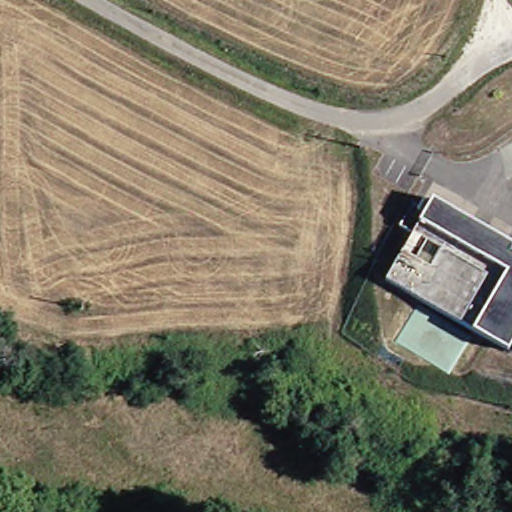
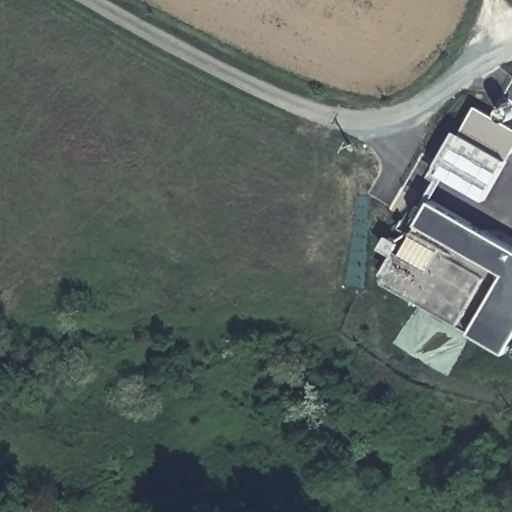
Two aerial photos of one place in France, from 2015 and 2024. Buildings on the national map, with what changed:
new [(487,200),(435,171),(458,130),(464,132),(478,105),(512,125),(512,153),(509,159),(487,200)]
unchanged [(512,253),(512,342),(504,357),(382,285),(428,205),(512,253)]

